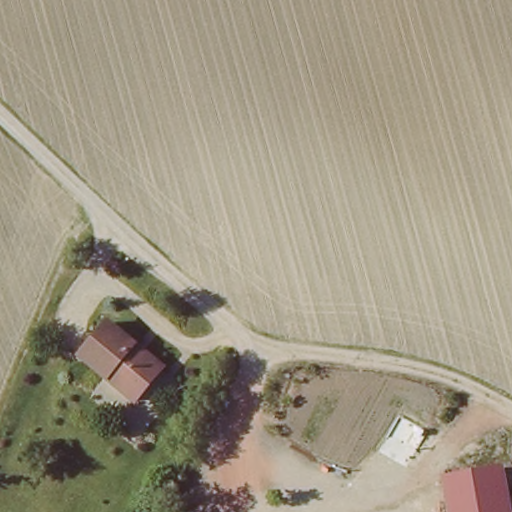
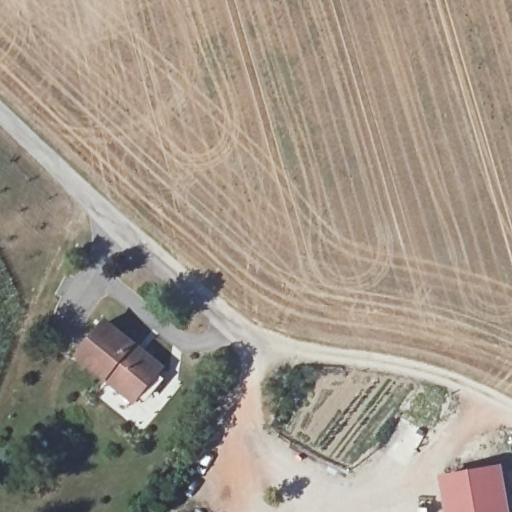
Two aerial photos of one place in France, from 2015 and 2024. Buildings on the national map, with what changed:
unchanged [(110,322),(165,368),(138,401),(83,356),(110,322)]
unchanged [(447,512),(441,477),(499,467),(507,512),(447,512)]

